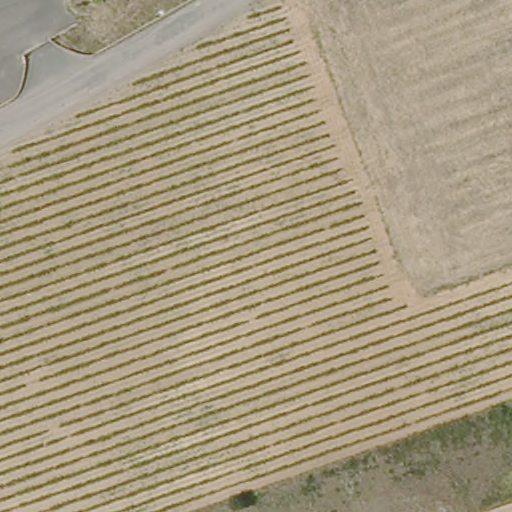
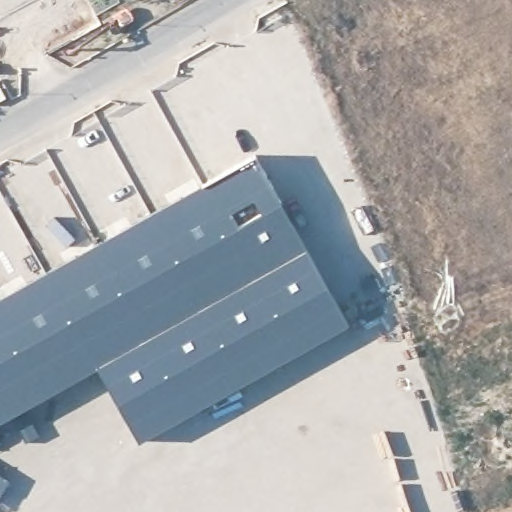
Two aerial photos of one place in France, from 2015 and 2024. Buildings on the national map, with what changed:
new [(20,288),(47,270),(189,189),(256,155),(336,296),(350,326),(226,393),(175,418),(165,404),(130,422),(96,368),(72,383),(0,424),(0,298),(20,288)]
new [(10,480),(0,495),(0,473),(10,480)]

